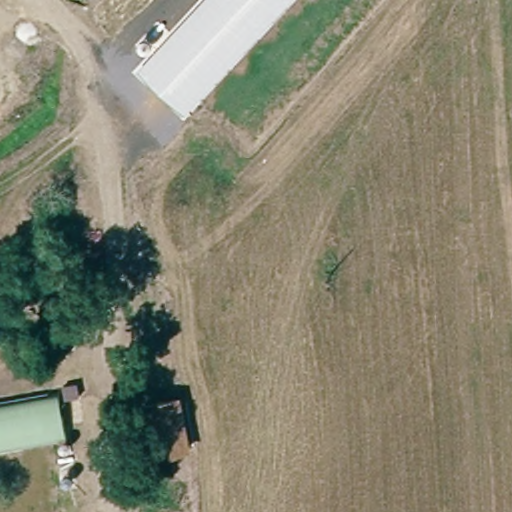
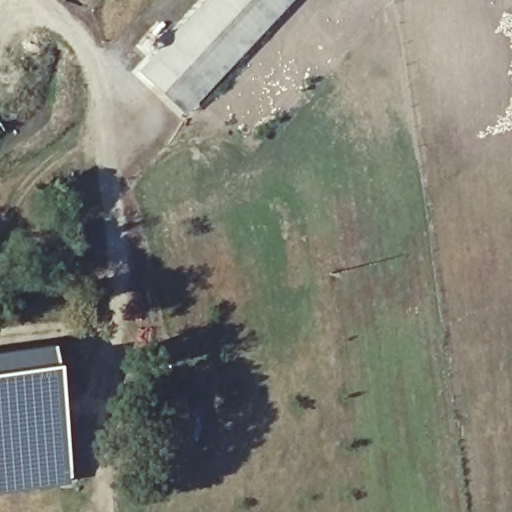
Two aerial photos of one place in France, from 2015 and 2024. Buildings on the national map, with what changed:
unchanged [(185,113),(139,70),(204,0),(289,0),(185,113)]
new [(0,491),(0,351),(53,343),(71,480),(0,491)]
demolished [(0,405),(59,394),(68,436),(0,449),(0,405)]
unchanged [(191,453),(161,459),(150,405),(180,396),(191,453)]

